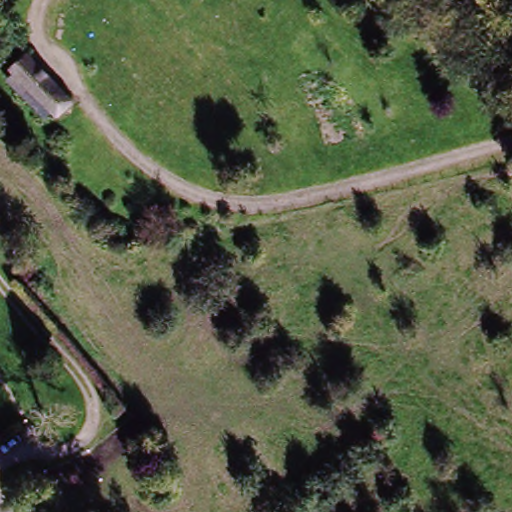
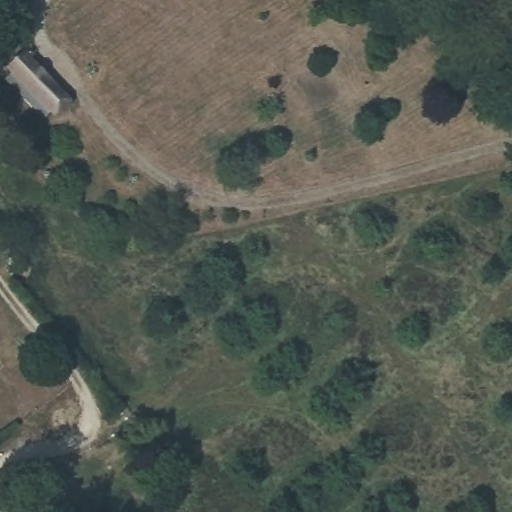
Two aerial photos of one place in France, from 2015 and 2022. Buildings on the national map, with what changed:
unchanged [(0,55),(0,48),(4,52),(0,55)]
unchanged [(45,107),(39,111),(27,100),(32,93),(11,71),(28,56),(71,102),(55,117),(45,107)]

